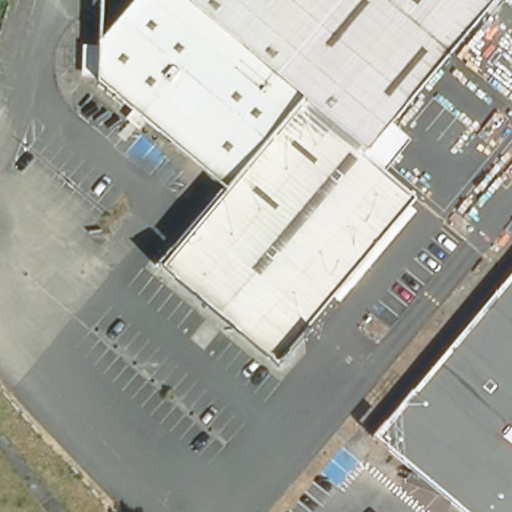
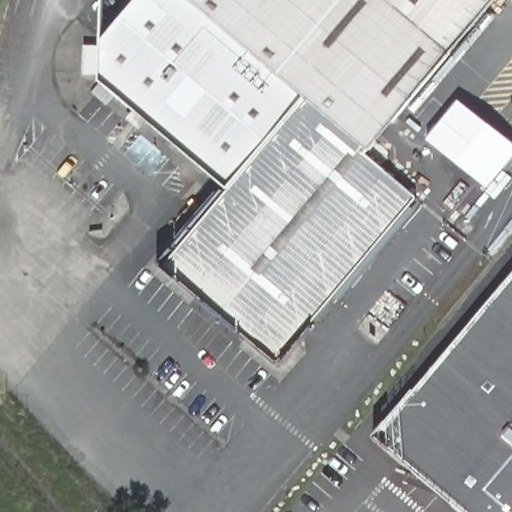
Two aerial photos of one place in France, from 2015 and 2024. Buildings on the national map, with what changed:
unchanged [(372,155),(370,159),(422,203),(402,226),(338,172),(318,155),(288,130),(282,125),(139,5),(144,0),(504,0),(372,155)]
unchanged [(318,155),(338,172),(402,226),(353,283),(282,368),(168,271),(233,195),(208,174),(201,181),(188,170),(195,162),(152,126),(145,134),(132,122),(139,115),(104,85),(104,78),(90,78),(90,53),(104,53),(104,46),(139,5),(282,125),(288,130),(318,155)]
new [(458,101),(512,144),(512,160),(488,190),(457,165),(426,140),(458,101)]
unchanged [(512,512),(463,512),(380,441),(512,285),(512,512)]

